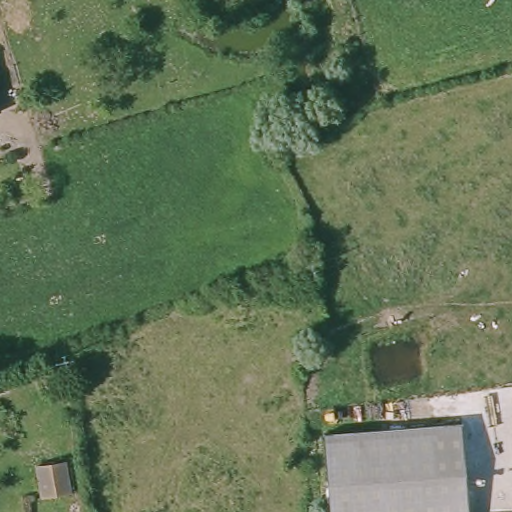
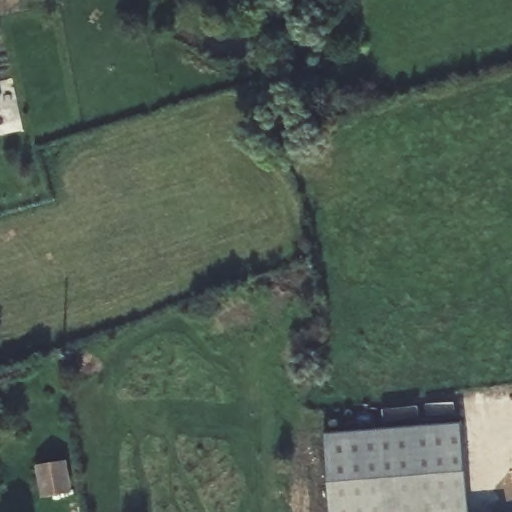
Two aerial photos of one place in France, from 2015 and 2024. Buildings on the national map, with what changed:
unchanged [(325,435),(461,425),(468,512),(330,512),(325,435)]
unchanged [(69,493),(44,497),(38,467),(63,462),(69,493)]

